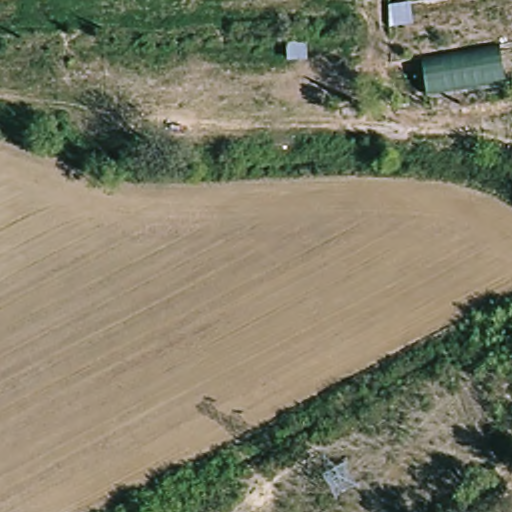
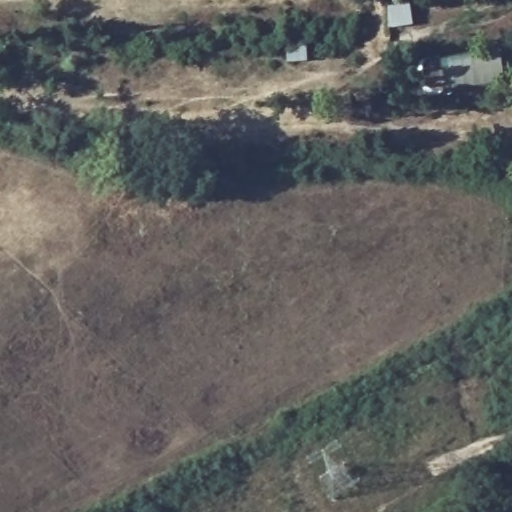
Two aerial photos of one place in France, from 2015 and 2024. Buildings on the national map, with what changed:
unchanged [(500,51),(505,78),(425,93),(420,66),(500,51)]

